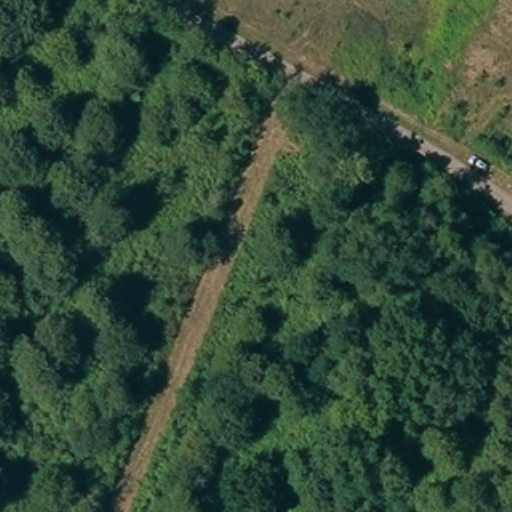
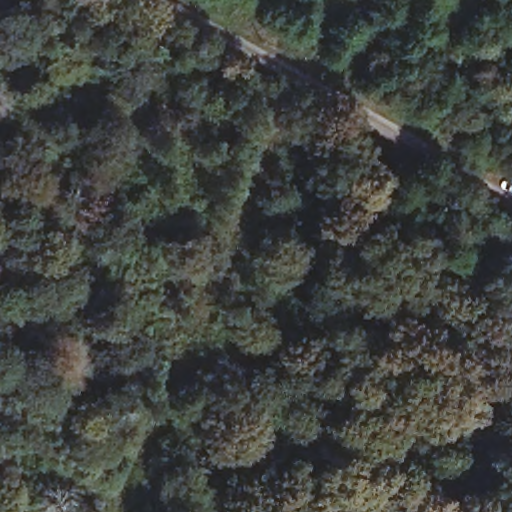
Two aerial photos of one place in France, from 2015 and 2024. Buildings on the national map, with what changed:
[]

